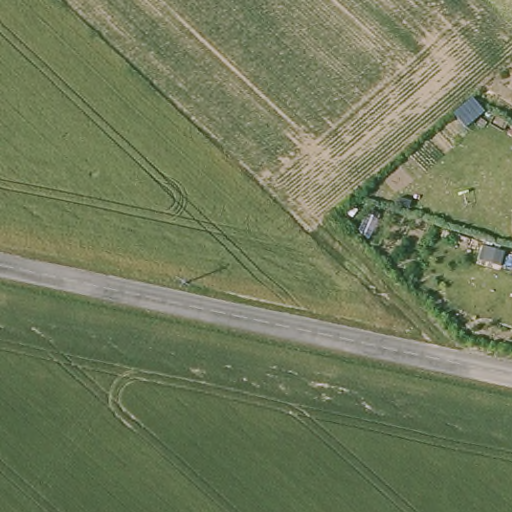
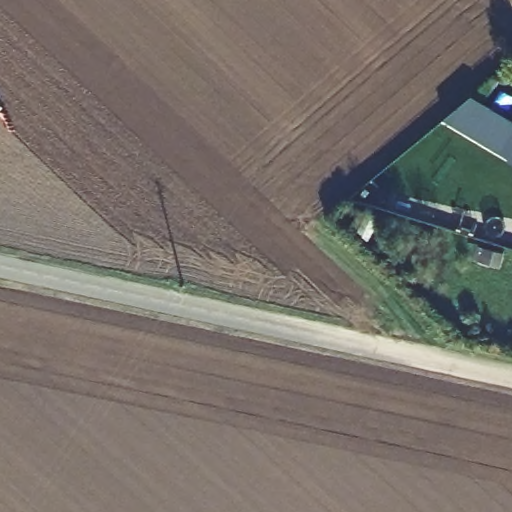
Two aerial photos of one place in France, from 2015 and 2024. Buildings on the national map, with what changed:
new [(472,96),(512,120),(512,164),(507,161),(509,158),(444,119),(472,96)]

